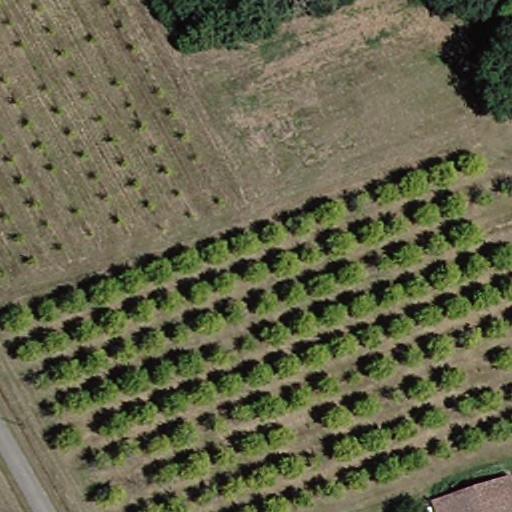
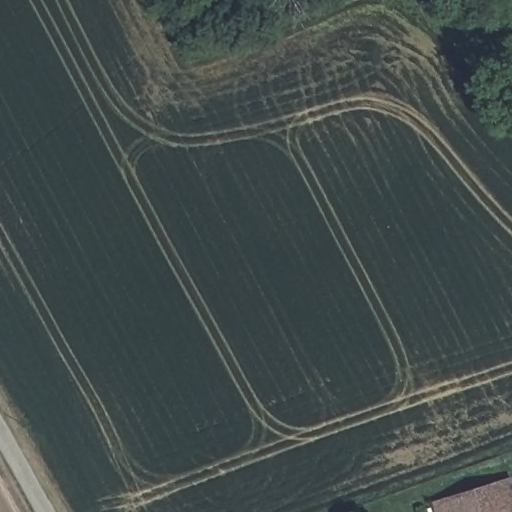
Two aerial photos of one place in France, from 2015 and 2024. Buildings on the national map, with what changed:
unchanged [(512,498),(512,512),(438,512),(436,506),(506,482),(512,498)]

